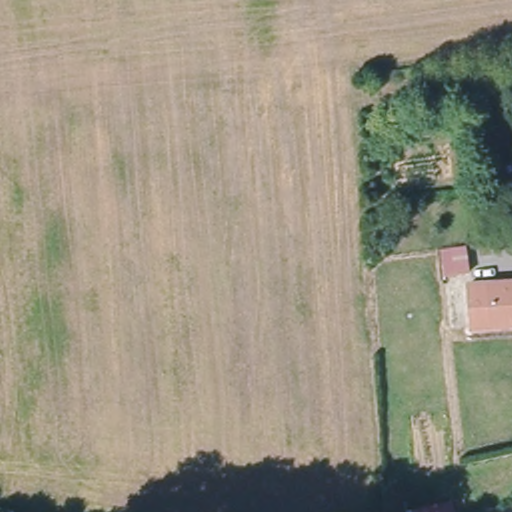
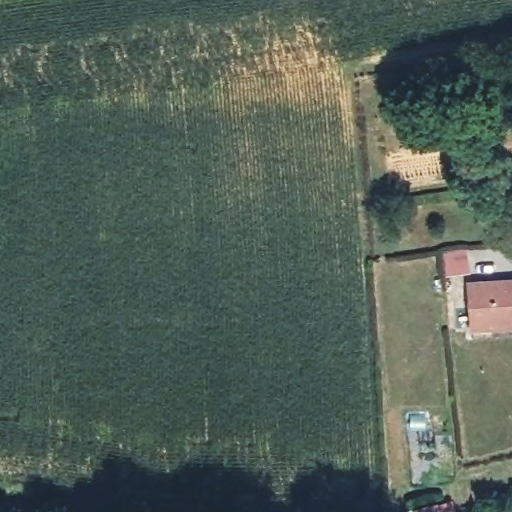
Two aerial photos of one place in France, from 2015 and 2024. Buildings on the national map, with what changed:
unchanged [(466,286),(512,281),(512,320),(472,325),(466,286)]
unchanged [(407,509),(454,500),(456,512),(408,512),(407,509)]

